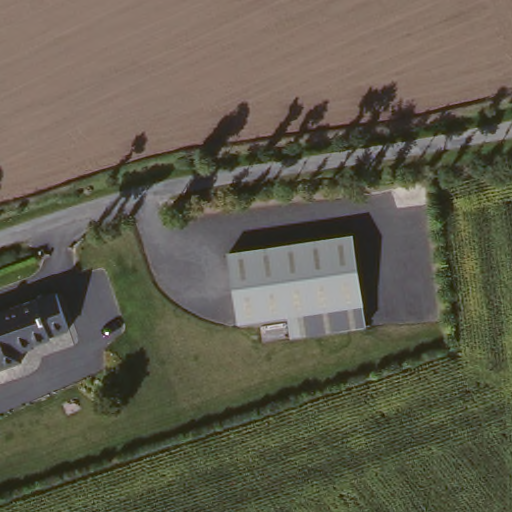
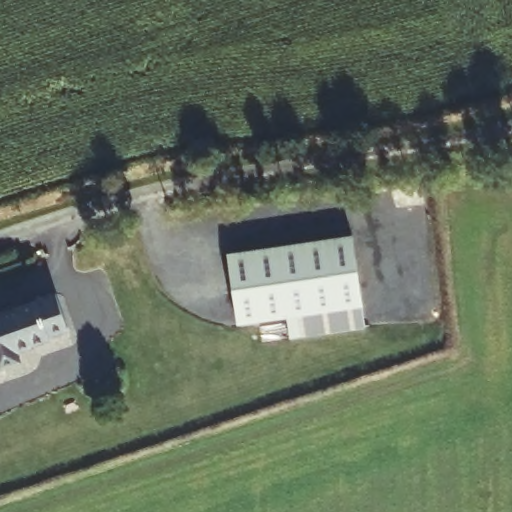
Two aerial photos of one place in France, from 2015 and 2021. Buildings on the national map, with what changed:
unchanged [(353,234),(365,322),(293,334),(286,317),(238,322),(226,252),(353,234)]
unchanged [(49,337),(51,339),(17,351),(21,363),(0,370),(0,314),(56,294),(69,330),(49,337)]

